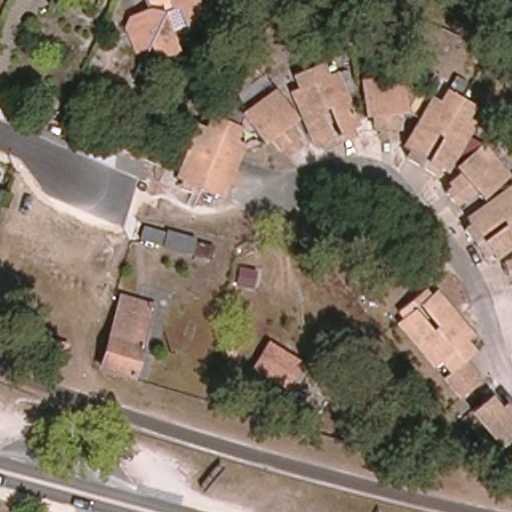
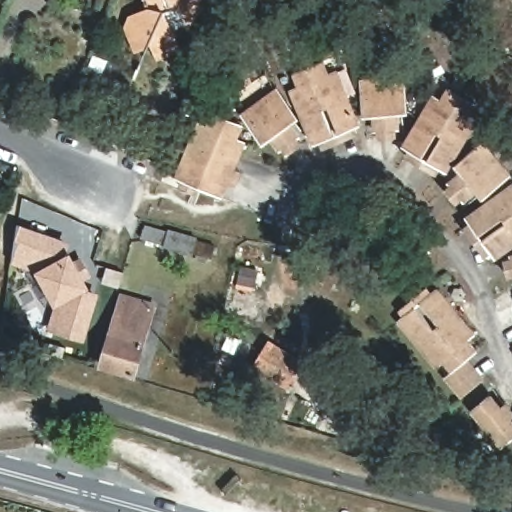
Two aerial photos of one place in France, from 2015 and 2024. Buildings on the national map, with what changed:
unchanged [(202,2),(189,25),(181,6),(164,17),(179,48),(162,62),(151,45),(137,54),(124,27),(132,12),(151,8),(146,0),(202,0),(202,2)]
unchanged [(322,148),(320,142),(313,144),(292,90),(297,88),(291,75),(321,63),(326,74),(335,71),(358,125),(352,128),(355,137),(322,148)]
unchanged [(378,141),(377,131),(371,131),(372,118),(361,118),(358,79),(402,76),(404,116),(397,116),(397,131),(392,131),(392,141),(378,141)]
unchanged [(404,160),(408,154),(399,149),(427,98),(435,102),(443,88),(476,106),(468,119),(473,122),(443,174),(437,170),(430,179),(404,160)]
unchanged [(290,155),(284,147),(281,150),(272,139),(264,145),(242,114),(276,89),(300,120),(290,128),(297,137),(303,146),(290,155)]
unchanged [(176,179),(198,124),(206,126),(212,112),(240,124),(233,137),(246,144),(240,156),(234,170),(241,173),(235,187),(227,184),(222,198),(201,188),(196,201),(175,192),(179,180),(176,179)]
unchanged [(446,195),(454,190),(449,184),(459,176),(452,167),(486,141),(512,177),(512,178),(481,202),(477,197),(465,205),(460,198),(451,204),(446,195)]
unchanged [(473,226),(468,219),(512,186),(512,247),(497,258),(491,250),(486,255),(466,231),(473,226)]
unchanged [(209,253),(135,240),(139,218),(214,233),(209,253)]
new [(72,243),(70,251),(76,260),(81,257),(93,276),(87,280),(91,287),(88,288),(100,292),(84,342),(47,330),(55,307),(35,271),(11,263),(17,223),(72,243)]
unchanged [(505,263),(512,262),(512,274),(507,275),(505,263)]
unchanged [(472,338),(463,346),(472,356),(465,362),(481,382),(457,402),(440,382),(447,375),(439,364),(432,370),(393,324),(400,319),(392,310),(417,291),(424,300),(433,292),(472,338)]
unchanged [(124,294),(159,306),(135,378),(100,366),(124,294)]
demolished [(31,345),(36,331),(59,339),(52,354),(31,345)]
unchanged [(282,390),(251,367),(270,341),(304,363),(282,390)]
unchanged [(501,446),(472,412),(488,399),(497,411),(504,406),(512,415),(512,417),(507,422),(512,429),(512,438),(501,446)]

